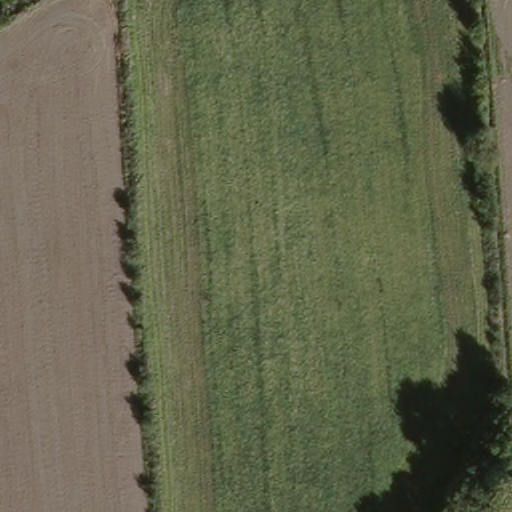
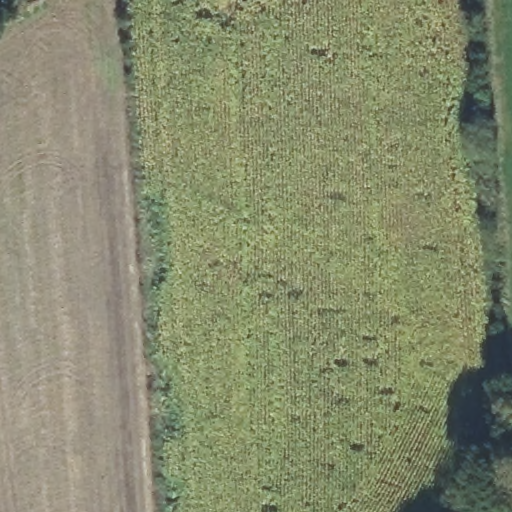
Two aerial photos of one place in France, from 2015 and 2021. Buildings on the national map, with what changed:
[]

